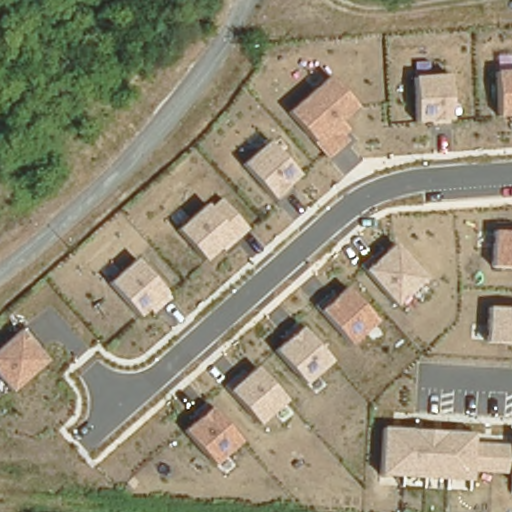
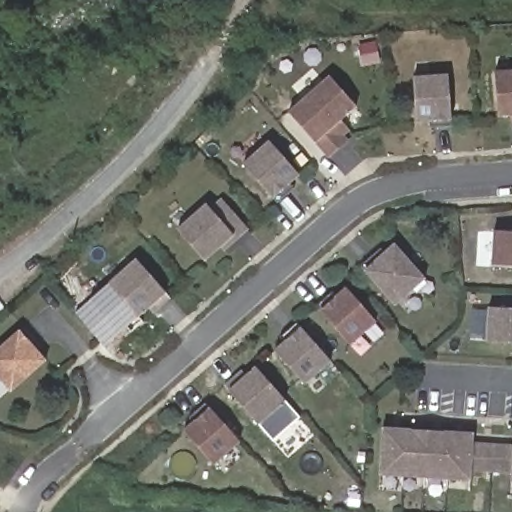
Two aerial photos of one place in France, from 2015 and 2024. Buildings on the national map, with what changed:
unchanged [(512,126),(511,118),(498,118),(492,71),(512,70),(512,126)]
unchanged [(453,128),(430,129),(429,122),(416,123),(411,76),(450,74),(453,119),(453,128)]
unchanged [(345,119),(350,130),(344,136),(349,141),(329,159),(315,143),(287,112),(329,76),(358,107),(345,119)]
unchanged [(294,188),(277,202),(272,198),(241,163),(270,140),(302,177),(294,183),(294,188)]
unchanged [(220,249),(203,264),(175,229),(206,203),(210,208),(223,198),(252,230),(226,253),(220,249)]
unchanged [(491,266),(494,230),(512,231),(512,267),(491,266)]
unchanged [(394,307),(363,271),(395,242),(425,278),(394,307)]
unchanged [(171,300),(154,316),(148,310),(139,319),(109,283),(137,259),(168,293),(171,300)]
new [(138,317),(118,333),(104,346),(75,312),(91,298),(109,283),(138,317)]
unchanged [(351,345),(320,310),(347,286),(378,321),(351,345)]
unchanged [(485,342),(486,306),(512,307),(512,344),(485,342)]
unchanged [(305,387),(273,351),(302,326),(333,362),(305,387)]
unchanged [(0,382),(0,348),(20,330),(24,334),(28,329),(44,346),(39,350),(50,362),(12,394),(0,382)]
unchanged [(258,427),(227,391),(256,366),(288,402),(258,427)]
unchanged [(213,466),(182,432),(211,408),(241,442),(213,466)]
unchanged [(473,470),(472,481),(379,475),(382,426),(476,432),(475,444),(512,447),(512,472),(473,470)]

